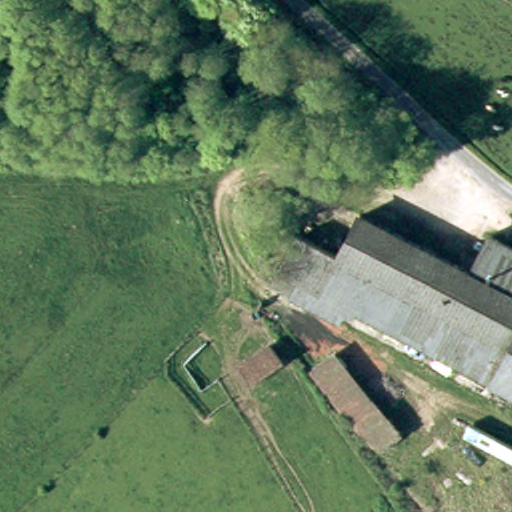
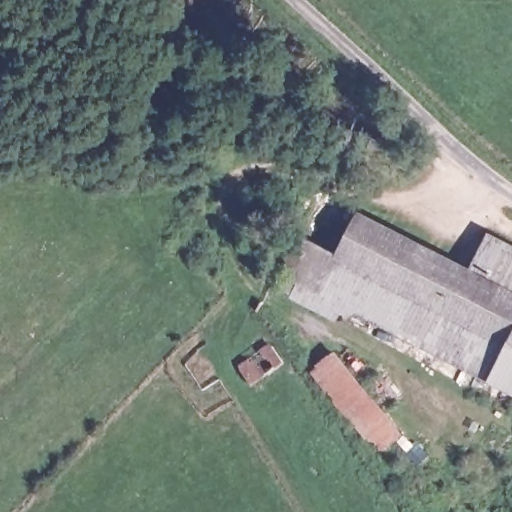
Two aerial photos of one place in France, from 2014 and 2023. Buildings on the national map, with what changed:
unchanged [(339,305),(332,318),(312,307),(295,298),(297,295),(276,284),(283,271),(300,238),(342,261),(365,220),(474,276),(480,263),(492,240),(509,249),(512,250),(512,394),(339,305)]
unchanged [(241,368),(274,343),(287,360),(254,385),(241,368)]
unchanged [(340,354),(404,432),(385,448),(321,370),(340,354)]

